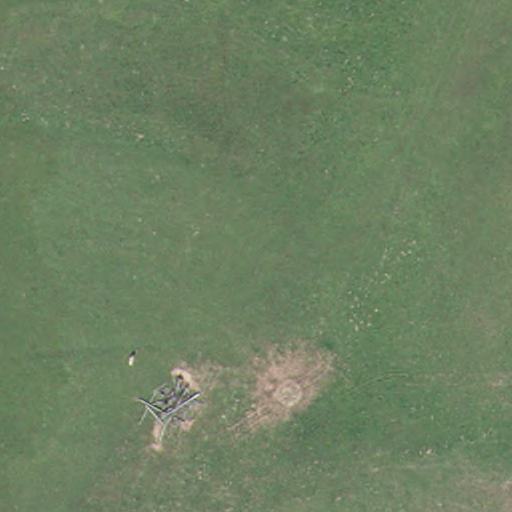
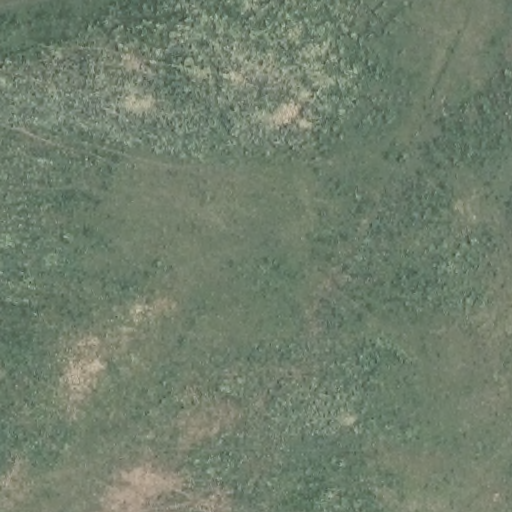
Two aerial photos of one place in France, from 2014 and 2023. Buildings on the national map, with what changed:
[]

